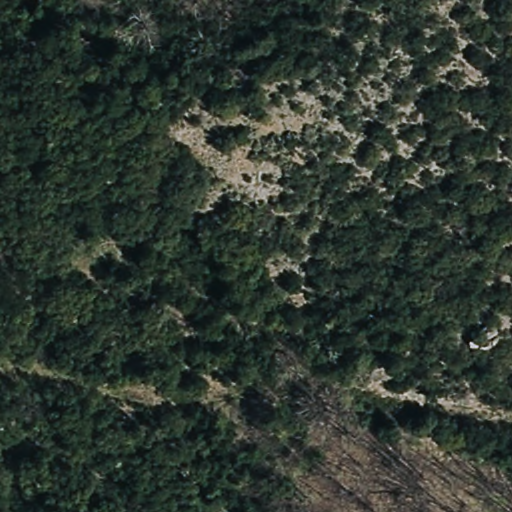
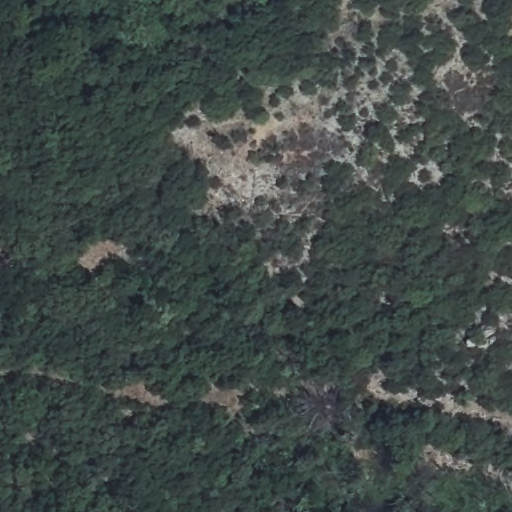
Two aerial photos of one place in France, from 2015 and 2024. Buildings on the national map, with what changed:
[]

